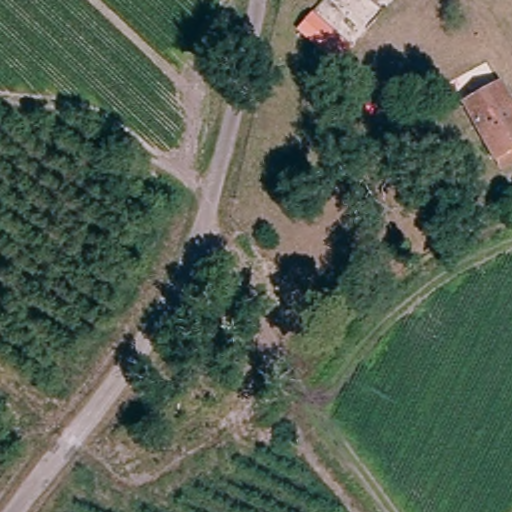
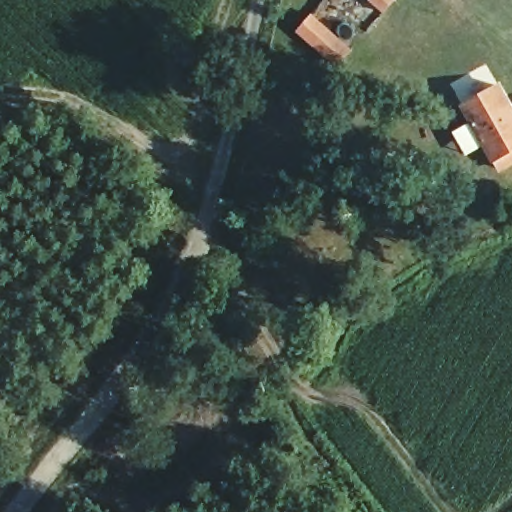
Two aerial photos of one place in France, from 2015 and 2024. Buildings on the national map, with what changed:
unchanged [(496,162),(493,164),(464,110),(497,90),(500,90),(512,110),(512,166),(502,171),(496,162)]

